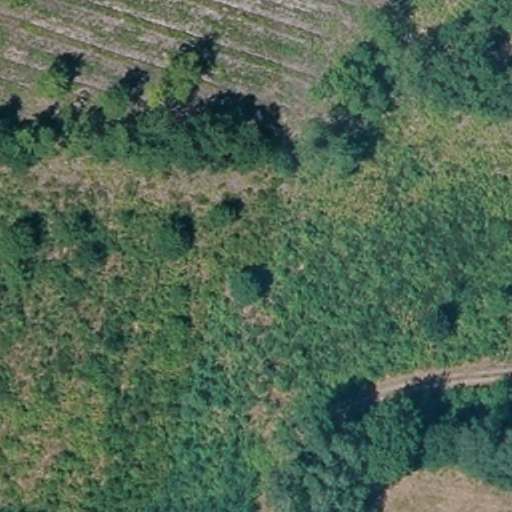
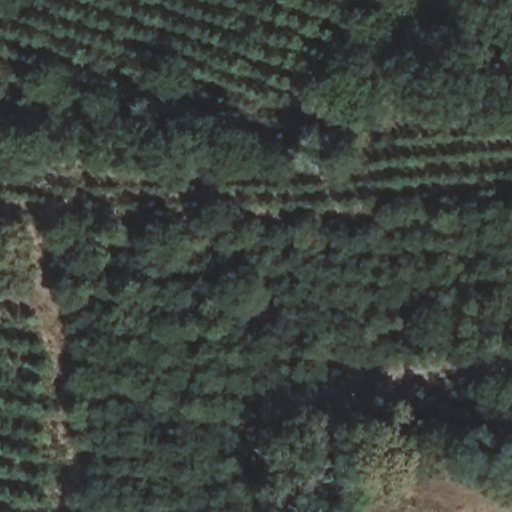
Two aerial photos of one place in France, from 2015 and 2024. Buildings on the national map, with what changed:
[]

